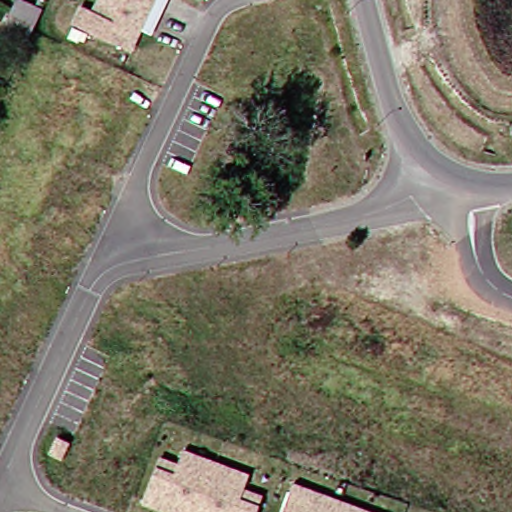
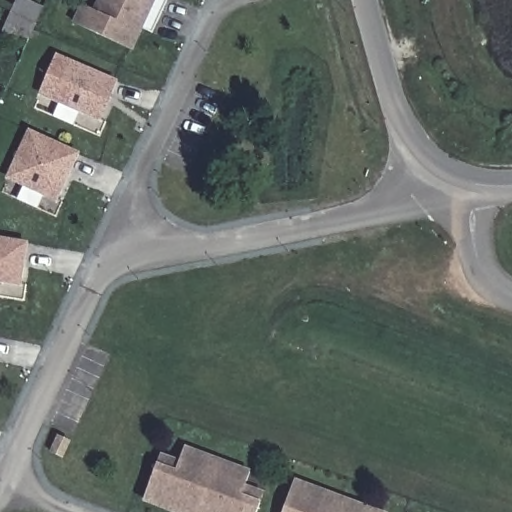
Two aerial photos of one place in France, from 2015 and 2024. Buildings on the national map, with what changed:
unchanged [(7,30),(14,14),(20,0),(23,0),(42,9),(36,25),(29,40),(7,30)]
unchanged [(131,49),(74,22),(84,2),(96,7),(99,0),(167,0),(155,25),(152,33),(141,28),(131,49)]
new [(38,95),(56,53),(118,80),(101,121),(38,95)]
new [(6,178),(28,130),(80,152),(57,201),(6,178)]
new [(0,282),(0,237),(28,241),(21,286),(0,282)]
unchanged [(62,457),(52,452),(60,435),(70,440),(62,457)]
unchanged [(157,464),(161,455),(180,461),(185,446),(252,471),(246,486),(265,493),(262,502),(258,512),(179,512),(172,510),(144,499),(157,464)]
unchanged [(322,489),(364,505),(382,512),(284,512),(297,480),(322,489)]

